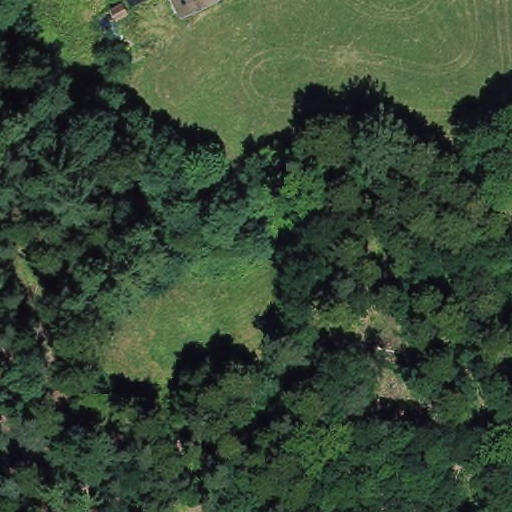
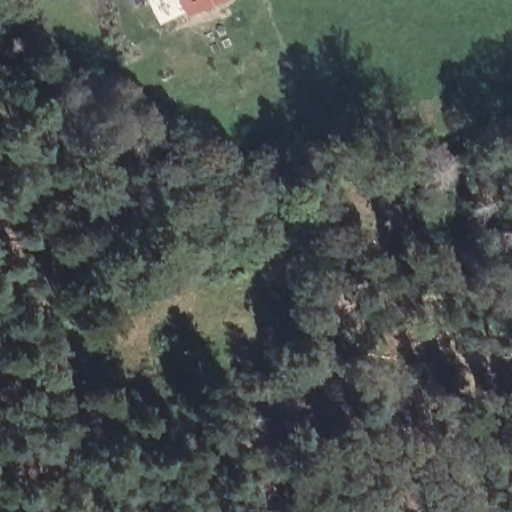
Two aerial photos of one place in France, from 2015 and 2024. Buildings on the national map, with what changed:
unchanged [(137,0),(155,0),(140,7),(137,0)]
unchanged [(187,19),(177,0),(223,0),(224,1),(187,19)]

